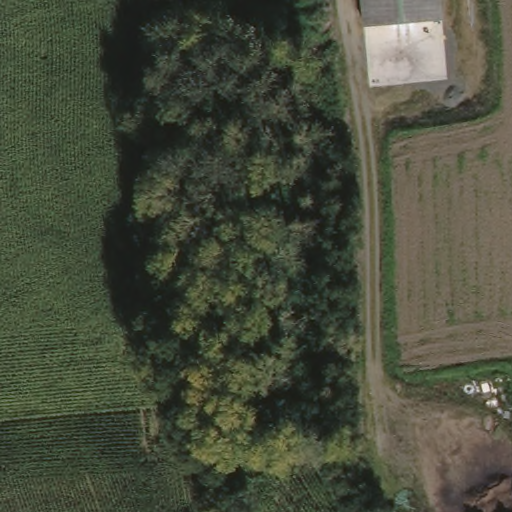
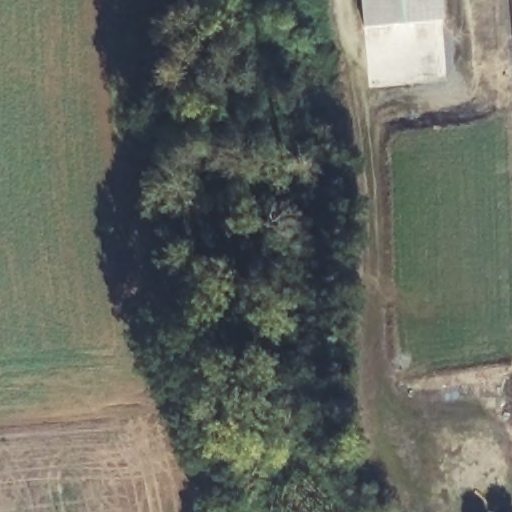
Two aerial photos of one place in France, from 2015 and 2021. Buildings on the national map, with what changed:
unchanged [(439,0),(441,21),(362,22),(360,0),(439,0)]

